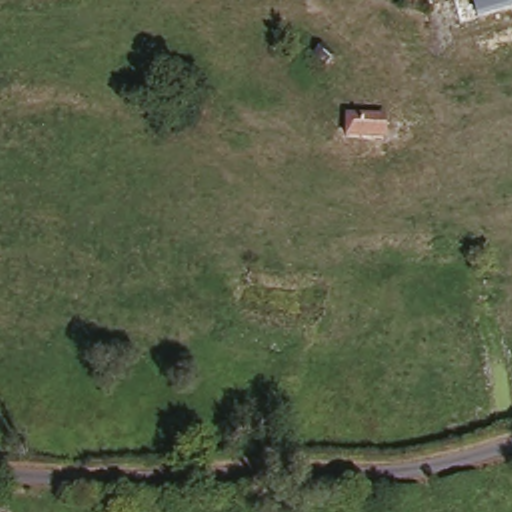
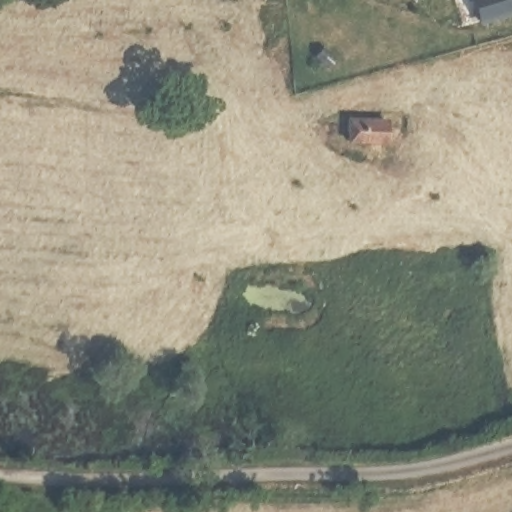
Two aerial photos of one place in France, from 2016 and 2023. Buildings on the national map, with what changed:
unchanged [(457,0),(512,0),(512,10),(461,25),(457,0)]
unchanged [(302,55),(294,45),(300,37),(309,47),(302,55)]
unchanged [(352,116),(386,115),(385,131),(353,130),(352,116)]

